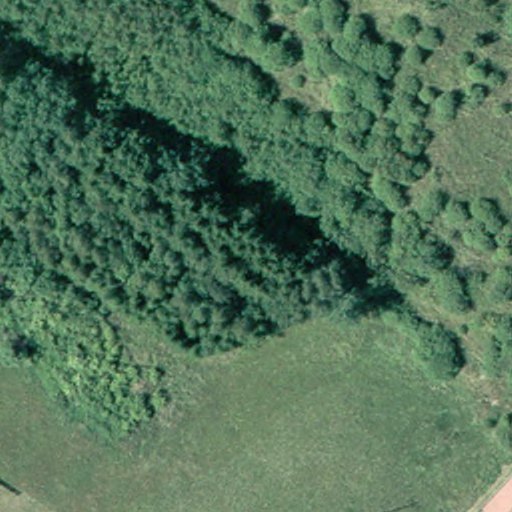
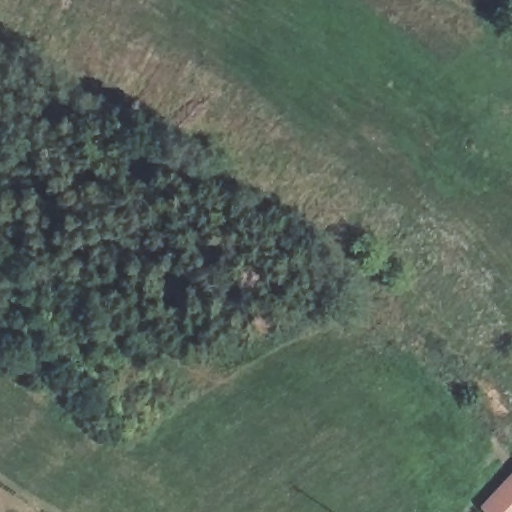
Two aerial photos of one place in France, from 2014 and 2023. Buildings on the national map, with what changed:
unchanged [(486,508),(495,498),(512,480),(512,512),(489,512),(486,508)]

